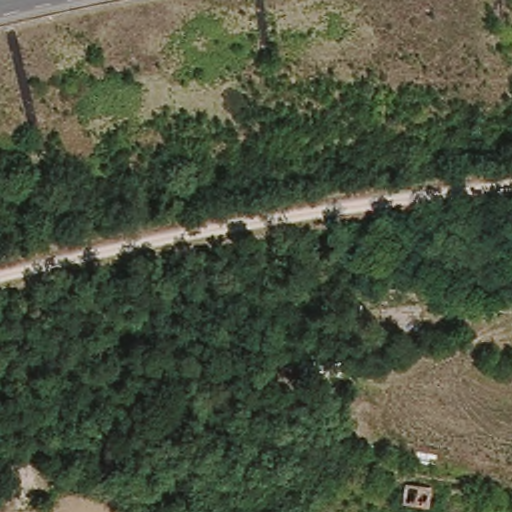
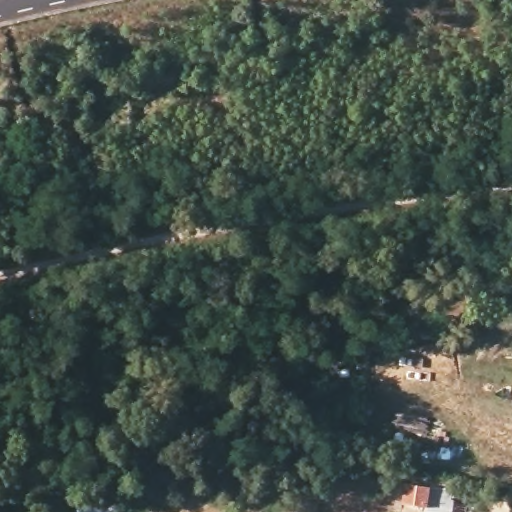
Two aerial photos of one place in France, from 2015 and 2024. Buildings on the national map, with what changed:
unchanged [(0,482),(0,458),(15,456),(17,455),(21,477),(0,482)]
unchanged [(405,507),(410,482),(438,488),(434,510),(405,507)]

